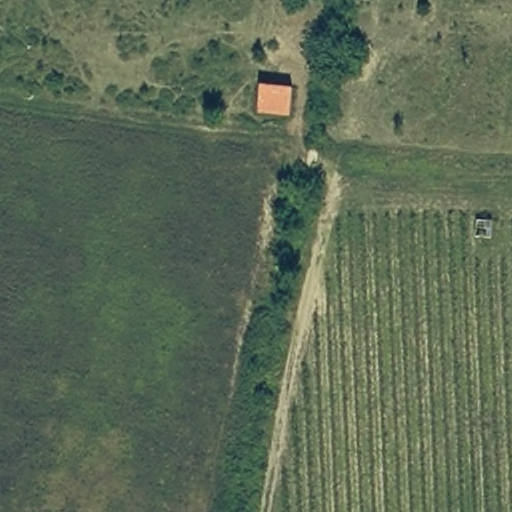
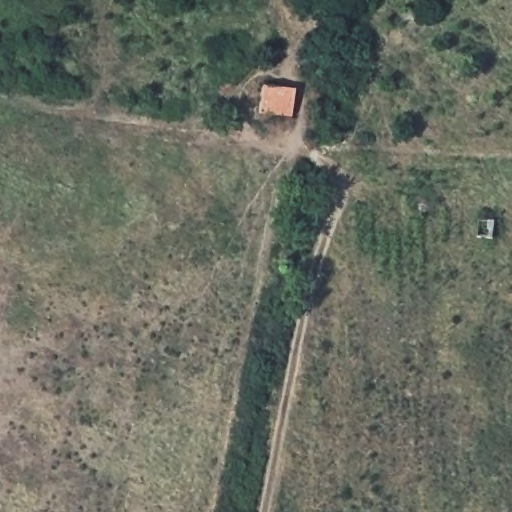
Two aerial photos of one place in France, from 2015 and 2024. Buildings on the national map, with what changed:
unchanged [(298,90),(295,116),(257,111),(260,86),(298,90)]

